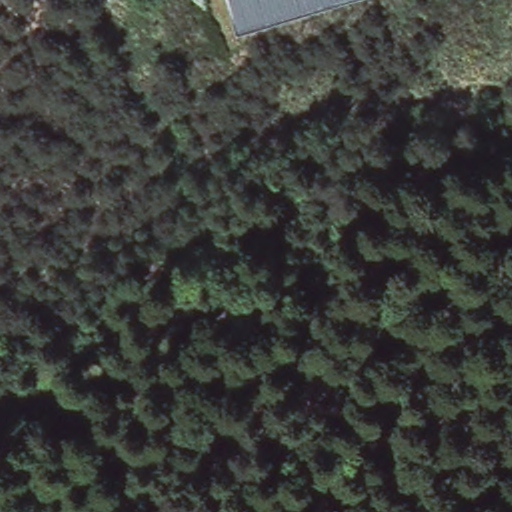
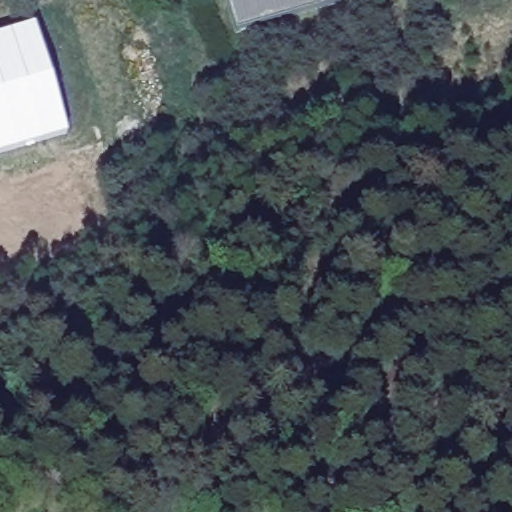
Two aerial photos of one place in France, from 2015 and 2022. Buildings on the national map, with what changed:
unchanged [(226,0),(355,0),(236,36),(226,0)]
new [(68,133),(0,154),(0,34),(35,24),(68,133)]

